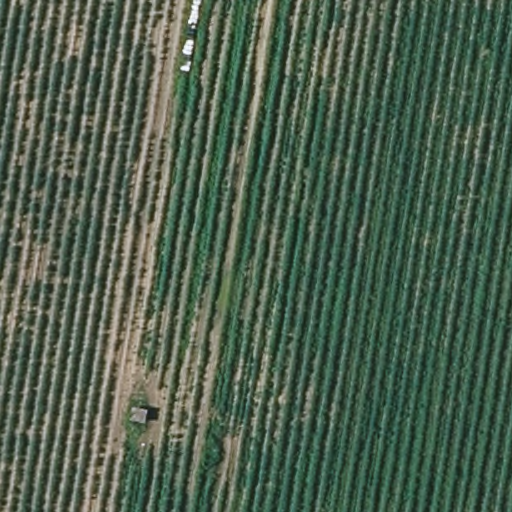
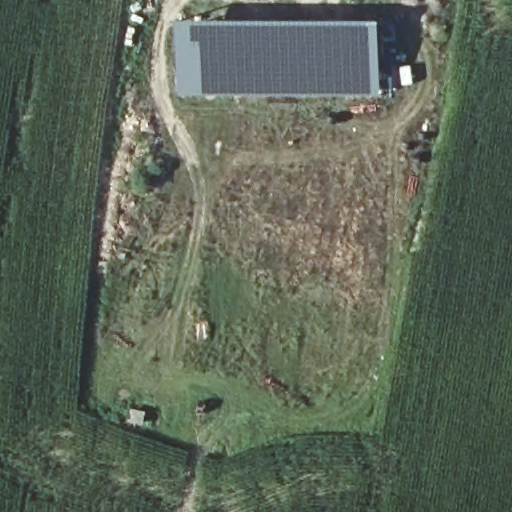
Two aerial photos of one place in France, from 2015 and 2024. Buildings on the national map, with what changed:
new [(176,44),(180,20),(382,19),(382,96),(264,95),(175,96),(176,44)]

